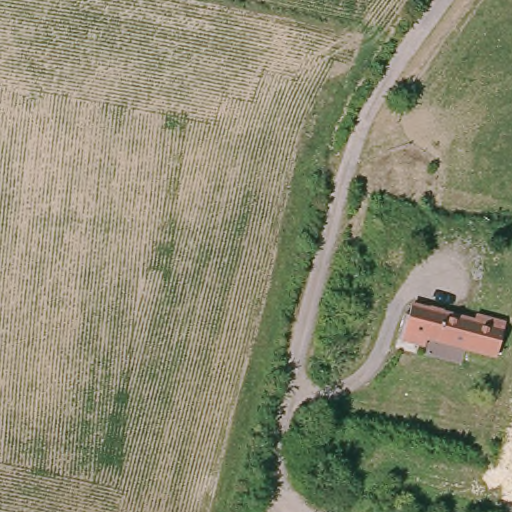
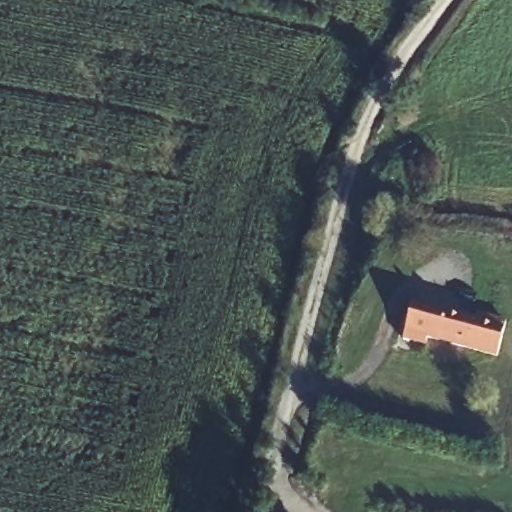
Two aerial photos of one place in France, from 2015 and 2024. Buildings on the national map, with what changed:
unchanged [(413,292),(476,309),(478,302),(507,310),(498,347),(428,327),(426,335),(403,329),(413,292)]

